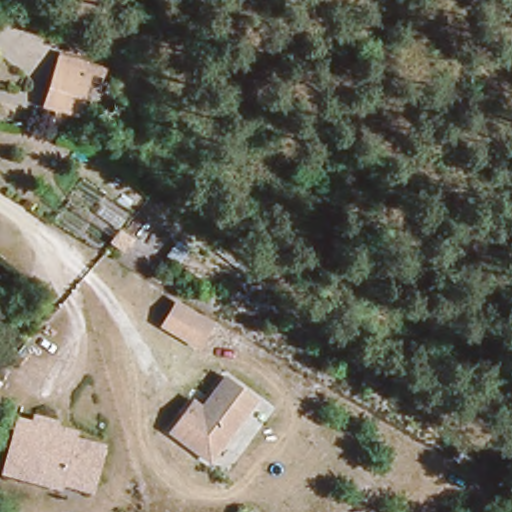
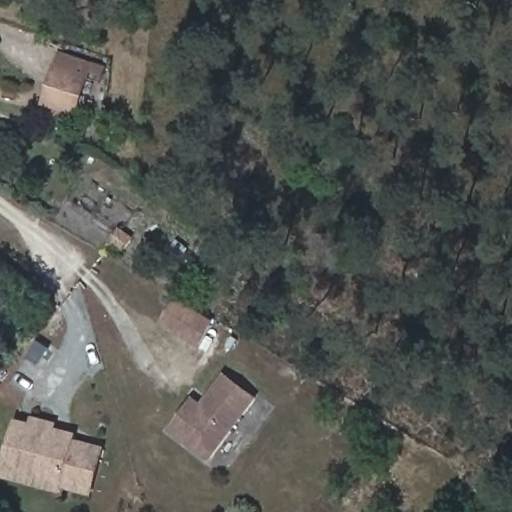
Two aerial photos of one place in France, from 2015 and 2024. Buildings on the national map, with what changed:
unchanged [(77,98),(50,88),(62,54),(90,64),(77,98)]
unchanged [(56,107),(59,97),(72,101),(70,111),(56,107)]
unchanged [(194,343),(160,323),(172,301),(207,322),(194,343)]
unchanged [(193,397),(202,405),(209,396),(227,374),(256,397),(209,458),(169,427),(193,397)]
unchanged [(0,452),(1,448),(9,417),(37,424),(38,418),(59,423),(57,427),(77,432),(76,439),(106,446),(95,491),(64,483),(63,487),(0,472),(0,452)]

